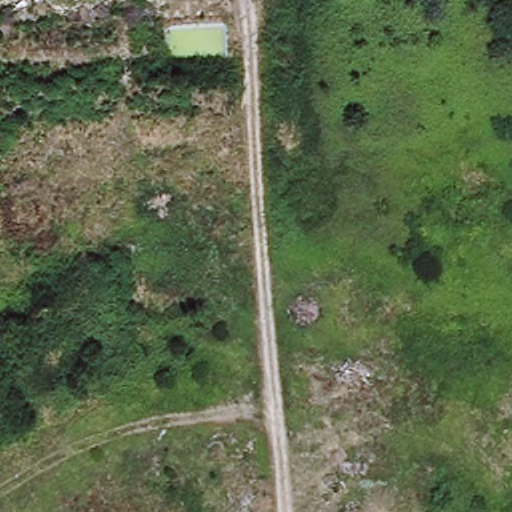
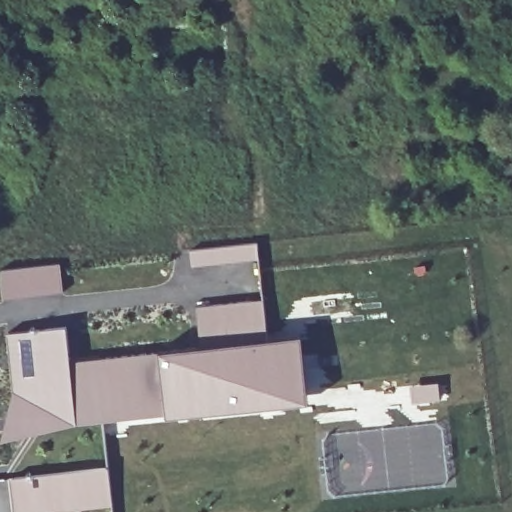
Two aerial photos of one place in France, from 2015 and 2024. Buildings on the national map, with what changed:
new [(3,298),(0,269),(60,263),(62,292),(3,298)]
new [(7,346),(5,336),(26,334),(64,330),(67,366),(69,378),(67,366),(103,362),(199,352),(194,311),(250,305),(261,304),(263,315),(266,344),(301,340),(308,407),(165,422),(165,418),(164,418),(59,428),(4,441),(11,394),(7,346)]
new [(45,512),(13,512),(12,500),(10,481),(15,480),(106,470),(110,503),(45,510),(45,512)]

